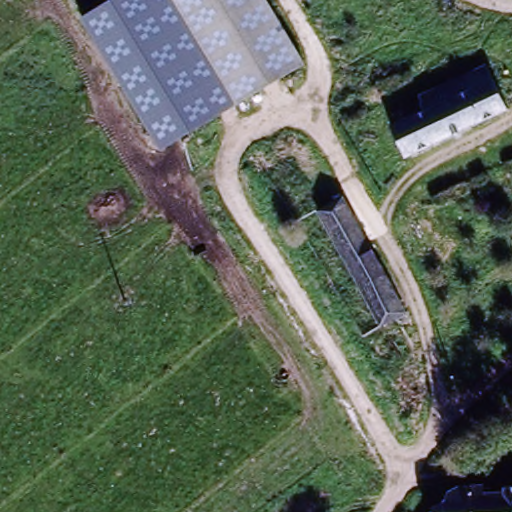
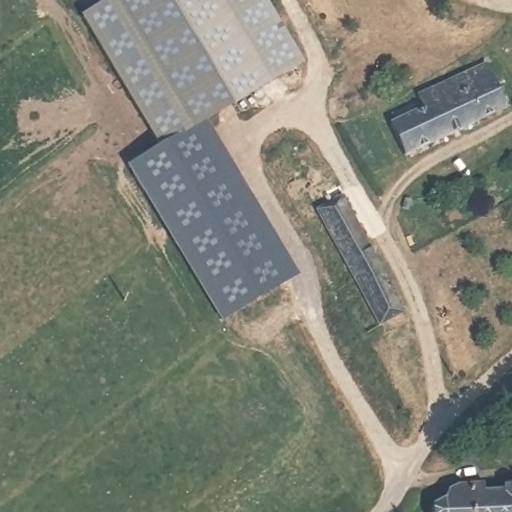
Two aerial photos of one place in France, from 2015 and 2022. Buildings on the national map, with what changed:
unchanged [(240,105),(160,149),(80,16),(109,0),(185,0),(186,1),(240,105)]
unchanged [(186,0),(266,0),(305,66),(240,105),(186,0)]
unchanged [(396,144),(388,129),(426,110),(421,101),(490,69),(511,114),(413,160),(403,141),(396,144)]
new [(208,123),(298,273),(221,323),(128,168),(160,149),(208,123)]
unchanged [(346,267),(315,213),(343,199),(372,253),(346,267)]
unchanged [(383,335),(346,267),(372,253),(409,320),(383,335)]
unchanged [(427,510),(439,504),(476,501),(477,509),(498,507),(497,500),(512,500),(512,512),(427,512),(427,510)]

